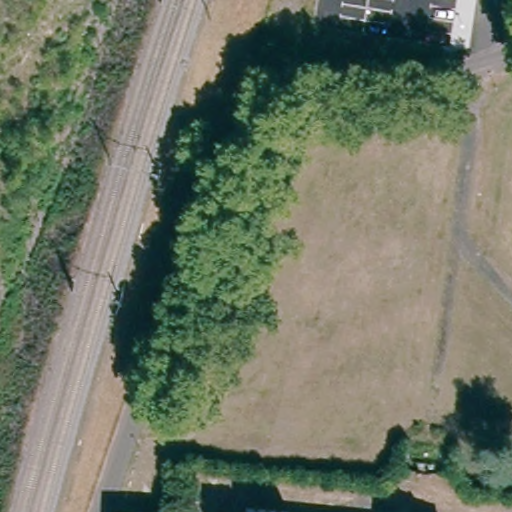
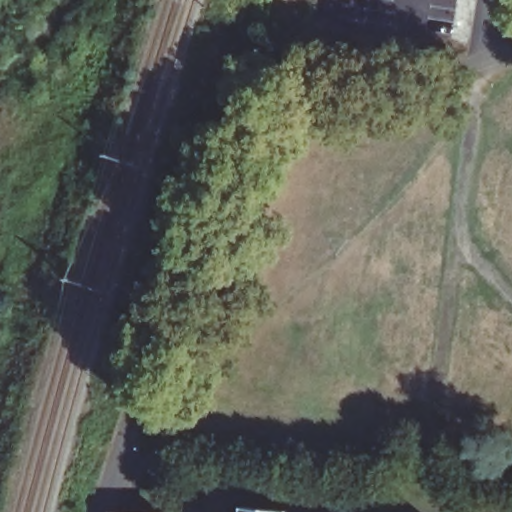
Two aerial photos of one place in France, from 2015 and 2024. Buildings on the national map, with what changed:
unchanged [(251,507),(288,512),(287,512),(250,512),(251,507)]

